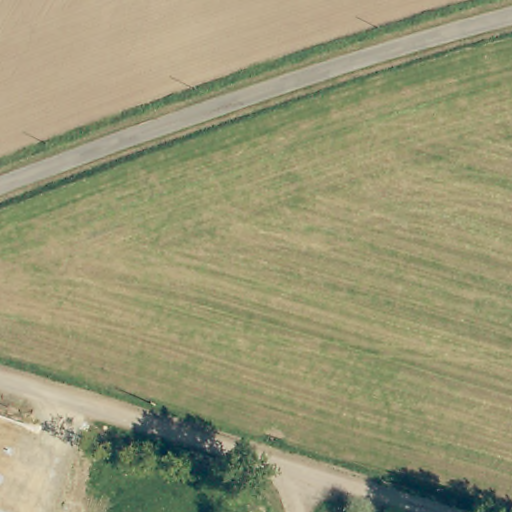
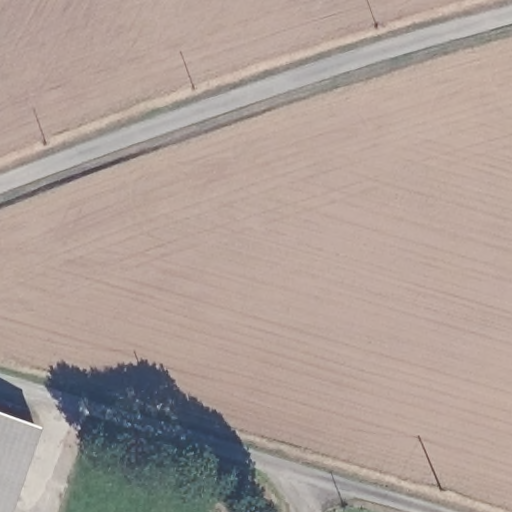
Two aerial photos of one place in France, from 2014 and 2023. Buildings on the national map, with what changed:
new [(38,428),(8,512),(0,512),(0,415),(38,428)]

